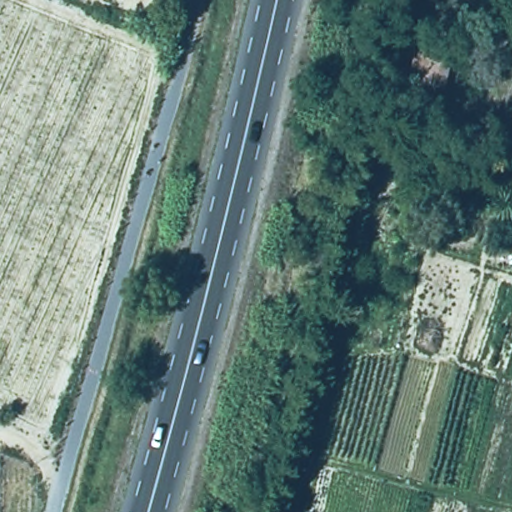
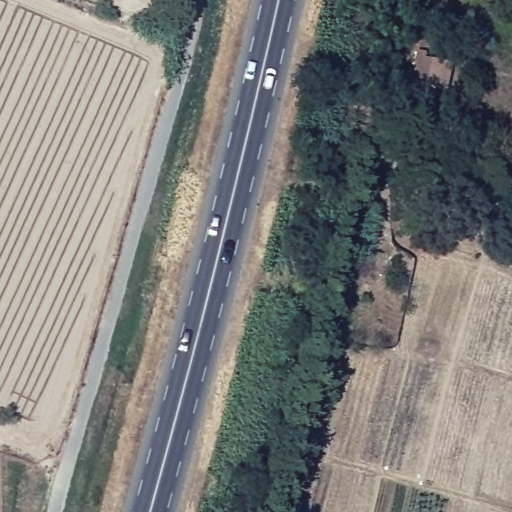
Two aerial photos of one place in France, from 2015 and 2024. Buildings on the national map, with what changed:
unchanged [(444,90),(410,81),(416,55),(450,62),(444,90)]

